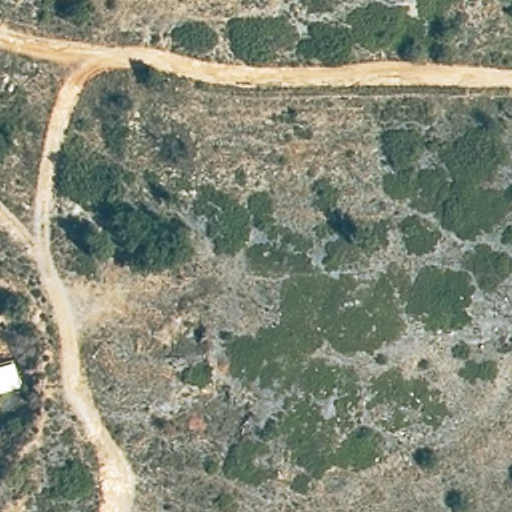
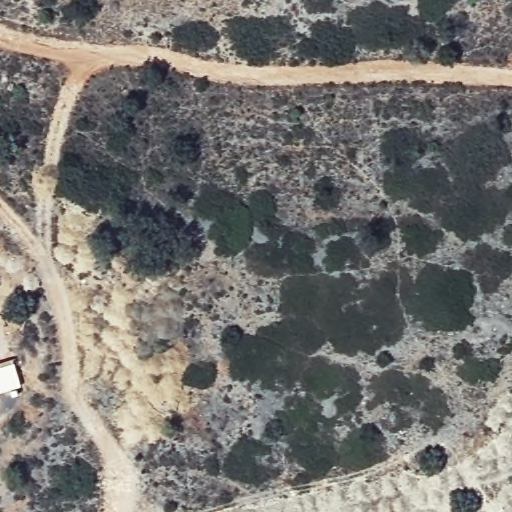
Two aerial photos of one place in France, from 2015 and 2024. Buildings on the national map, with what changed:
unchanged [(22,385),(0,390),(0,359),(13,355),(22,385)]

